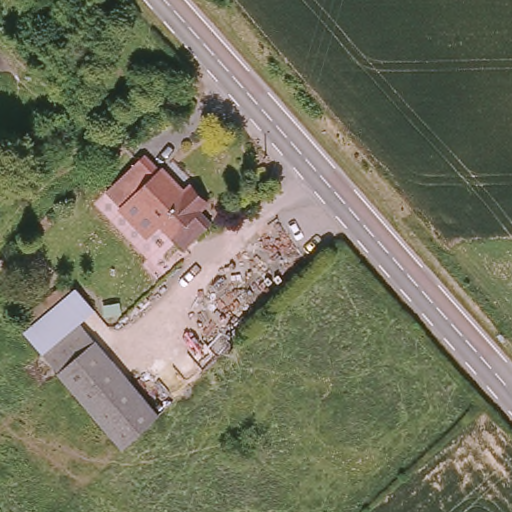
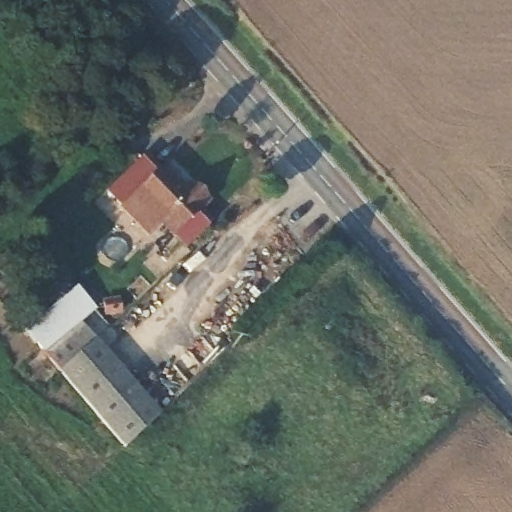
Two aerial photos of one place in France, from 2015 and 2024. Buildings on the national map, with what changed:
unchanged [(182,195),(191,187),(210,206),(200,216),(212,229),(185,255),(136,205),(123,216),(117,209),(95,229),(83,215),(145,155),(182,195)]
unchanged [(117,438),(57,368),(50,360),(38,346),(72,317),(83,330),(90,337),(149,407),(117,438)]

